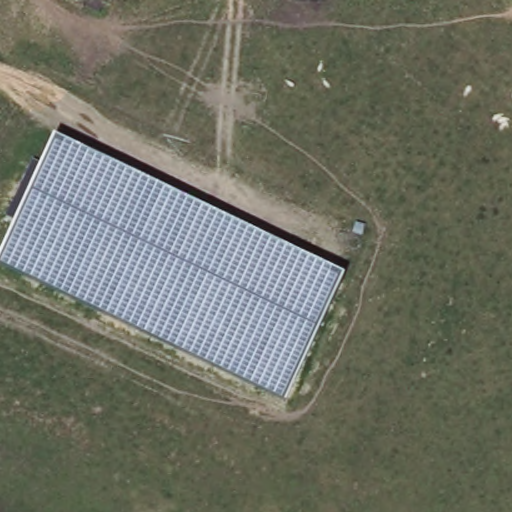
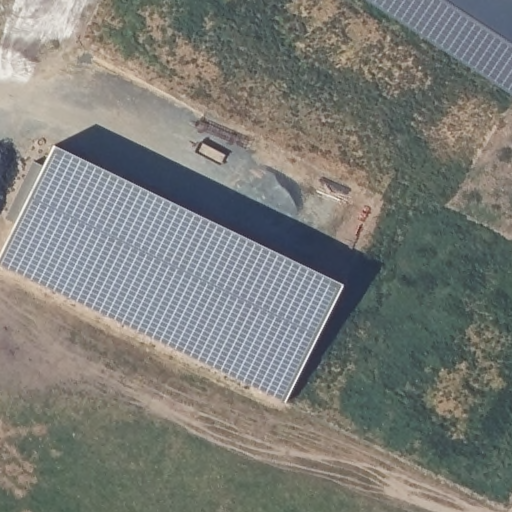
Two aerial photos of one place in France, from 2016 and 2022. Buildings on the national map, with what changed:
new [(371,0),(512,0),(512,90),(371,0)]
unchanged [(342,284),(283,402),(0,268),(0,254),(52,144),(342,284)]

